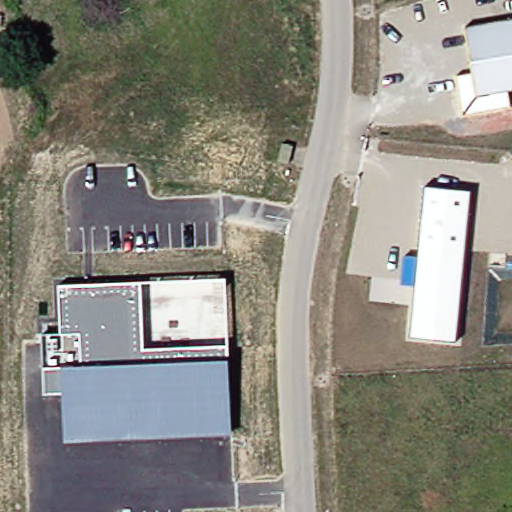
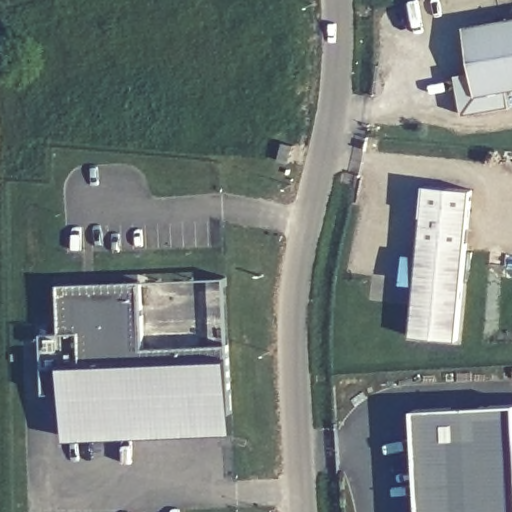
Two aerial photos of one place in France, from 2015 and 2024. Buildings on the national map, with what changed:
unchanged [(508,89),(511,106),(463,114),(457,74),(473,71),(465,25),(512,17),(512,88),(508,89)]
unchanged [(287,162),(277,159),(281,141),(292,144),(287,162)]
unchanged [(411,335),(417,284),(402,283),(404,256),(419,256),(427,186),(472,191),(457,340),(411,335)]
unchanged [(64,393),(46,393),(45,367),(44,334),(62,333),(61,285),(142,282),(144,349),(229,345),(230,360),(232,434),(66,442),(64,393)]
new [(512,404),(512,512),(421,512),(414,409),(512,404)]

